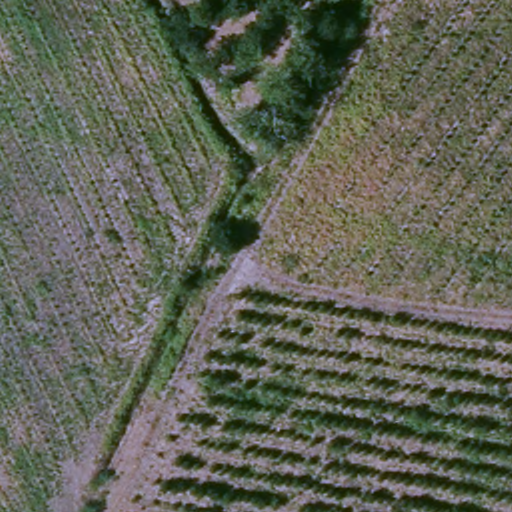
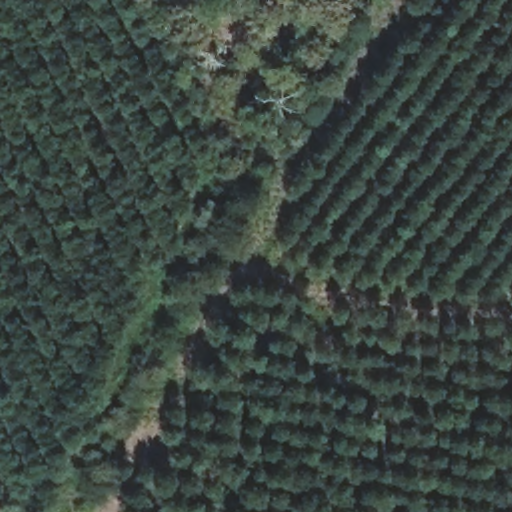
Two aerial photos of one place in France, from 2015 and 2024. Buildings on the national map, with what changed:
[]

